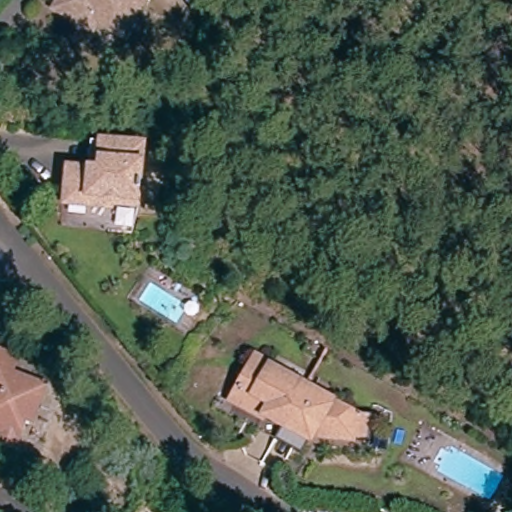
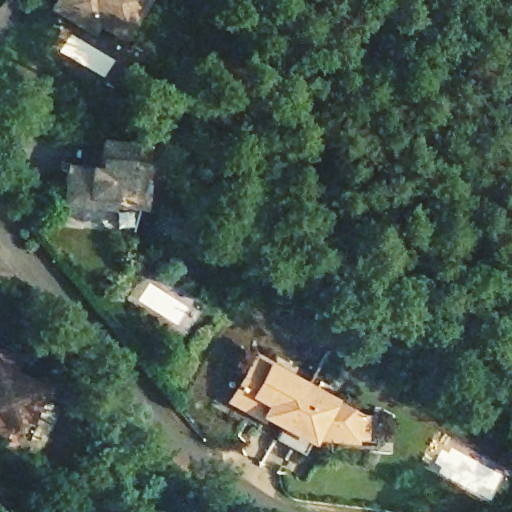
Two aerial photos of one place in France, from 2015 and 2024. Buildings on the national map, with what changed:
unchanged [(90,28),(86,36),(67,25),(47,14),(56,0),(139,0),(142,1),(128,24),(116,44),(105,37),(90,28)]
unchanged [(68,188),(70,169),(100,172),(101,163),(103,144),(143,148),(138,201),(113,198),(112,205),(88,202),(66,200),(68,188)]
unchanged [(20,453),(0,444),(0,353),(22,359),(15,380),(48,392),(20,453)]
unchanged [(281,426),(277,431),(227,403),(249,366),(365,432),(364,446),(311,442),(281,426)]

